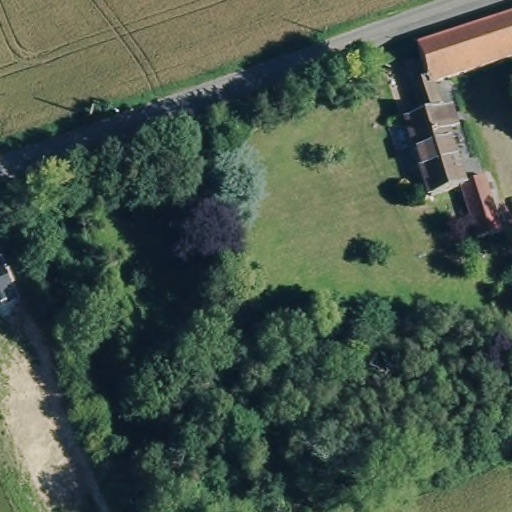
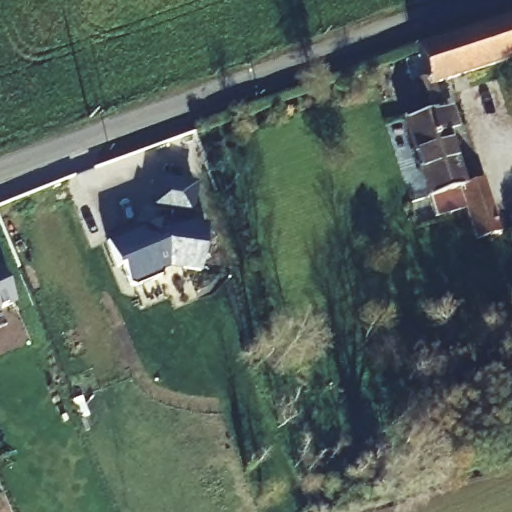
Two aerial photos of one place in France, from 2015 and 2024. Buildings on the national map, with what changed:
unchanged [(467,24),(489,17),(512,10),(512,57),(444,79),(447,88),(435,92),(439,106),(450,102),(455,120),(443,125),(460,183),(485,177),(500,232),(475,238),(458,187),(437,194),(427,198),(405,127),(404,124),(402,118),(413,115),(412,108),(417,106),(410,81),(425,76),(420,63),(417,52),(413,42),(414,41),(467,24)]
new [(157,176),(198,184),(192,211),(152,205),(157,176)]
new [(164,269),(160,275),(136,286),(130,283),(122,264),(117,266),(107,240),(165,217),(167,220),(207,224),(201,271),(168,268),(164,269)]
unchanged [(2,264),(17,304),(0,311),(0,266),(2,264)]

